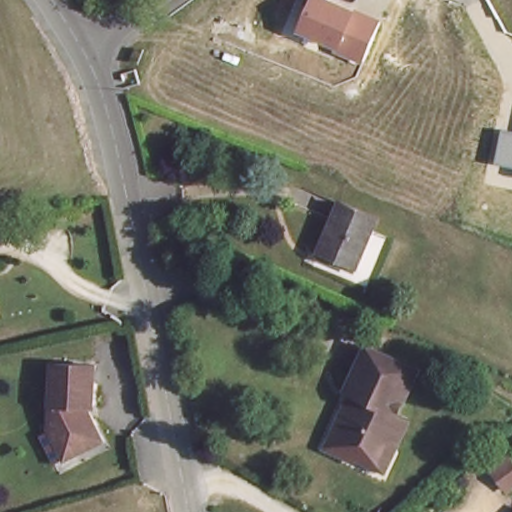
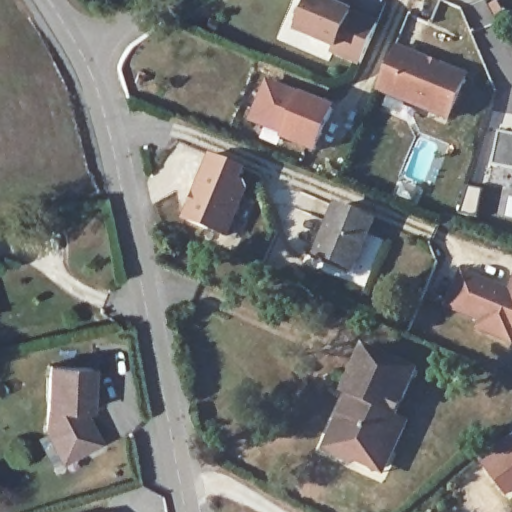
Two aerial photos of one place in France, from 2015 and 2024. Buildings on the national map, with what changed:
unchanged [(360,65),(332,56),(337,49),(295,32),(308,0),(326,0),(325,1),(377,22),(360,65)]
new [(397,44),(469,74),(450,122),(377,92),(397,44)]
new [(284,138),(250,122),(267,80),(300,97),(302,94),(335,109),(316,155),(282,140),(284,138)]
unchanged [(495,165),(500,132),(512,133),(512,168),(495,165)]
new [(223,237),(180,214),(207,154),(243,168),(239,179),(247,188),(223,237)]
new [(465,186),(481,189),(475,217),(457,214),(465,186)]
unchanged [(355,269),(315,254),(335,207),(374,221),(355,269)]
new [(475,331),(478,322),(445,308),(462,268),(508,287),(512,279),(512,345),(475,331)]
unchanged [(357,461),(357,452),(353,450),(347,461),(326,452),(330,440),(347,403),(353,392),(347,389),(366,345),(417,367),(395,419),(409,424),(397,448),(385,472),(373,467),(357,461)]
unchanged [(53,438),(49,428),(53,363),(95,367),(92,408),(85,407),(84,415),(88,415),(101,441),(73,454),(63,459),(53,438)]
unchanged [(498,491),(482,472),(497,458),(512,476),(512,479),(498,491)]
new [(111,512),(101,512),(111,510),(111,512)]

